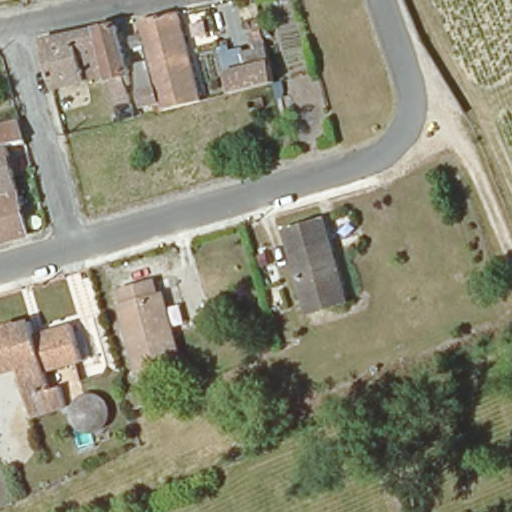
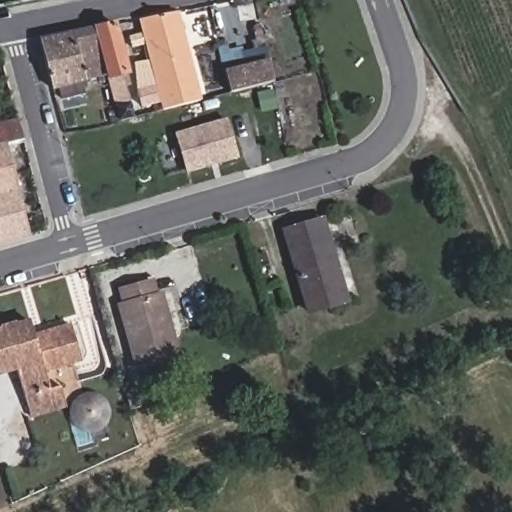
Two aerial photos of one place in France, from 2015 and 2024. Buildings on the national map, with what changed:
unchanged [(143,106),(140,93),(157,88),(160,88),(141,21),(180,13),(202,101),(165,111),(159,112),(157,103),(143,106)]
unchanged [(260,41),(251,42),(248,26),(256,25),(260,41)]
unchanged [(112,76),(99,29),(117,26),(130,75),(125,76),(131,106),(135,106),(136,118),(122,121),(112,76)]
unchanged [(42,40),(99,29),(112,76),(54,90),(42,40)]
unchanged [(227,95),(222,74),(264,64),(269,84),(227,95)]
unchanged [(21,118),(26,141),(6,146),(0,148),(0,123),(21,118)]
new [(180,138),(229,123),(241,161),(191,176),(180,138)]
unchanged [(6,146),(30,234),(0,243),(0,148),(6,146)]
unchanged [(284,231),(322,221),(347,307),(309,317),(284,231)]
unchanged [(177,364),(141,374),(123,313),(126,312),(122,297),(155,288),(160,301),(167,299),(176,337),(183,361),(177,364)]
unchanged [(18,366),(0,372),(0,328),(26,320),(34,346),(44,343),(43,337),(67,327),(78,364),(69,366),(75,385),(65,388),(71,408),(34,419),(18,366)]

